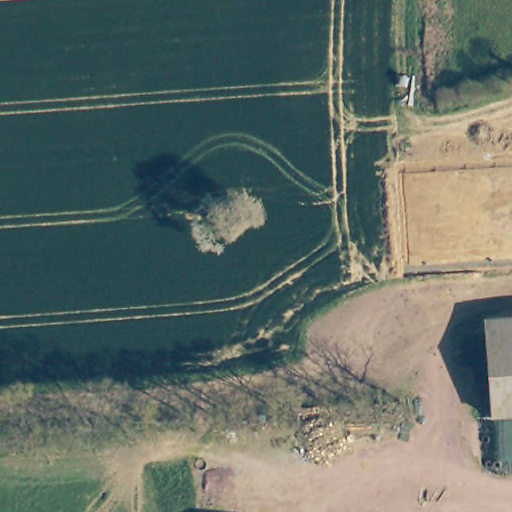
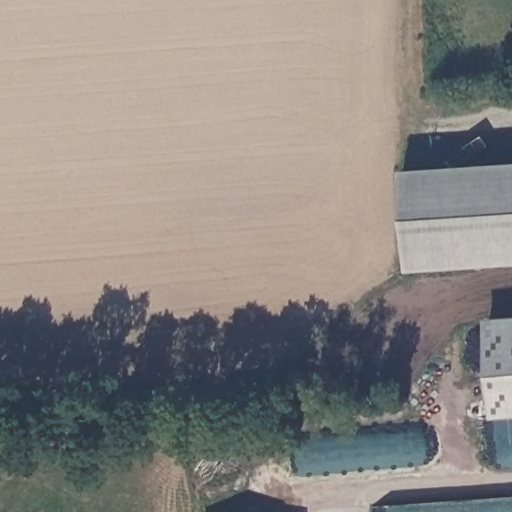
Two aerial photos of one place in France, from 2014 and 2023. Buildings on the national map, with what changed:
new [(512,163),(512,265),(408,272),(402,171),(512,163)]
unchanged [(512,329),(512,419),(492,420),(486,331),(512,329)]

